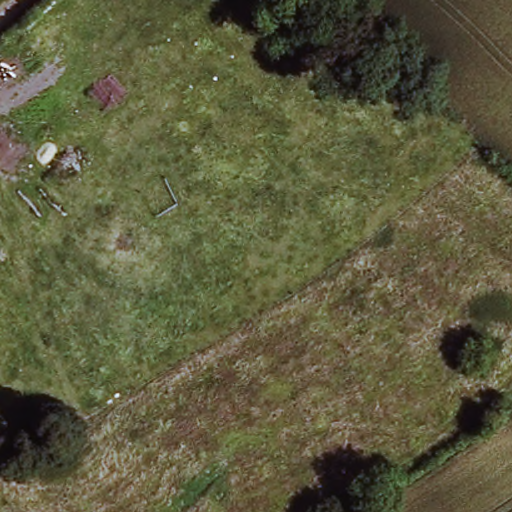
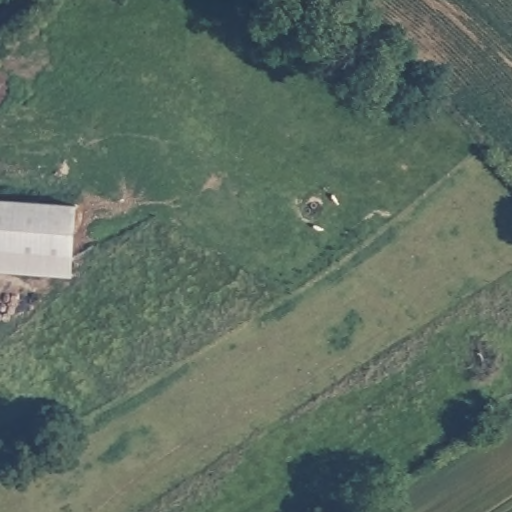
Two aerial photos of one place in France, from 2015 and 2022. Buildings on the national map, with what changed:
demolished [(1,83),(0,83),(0,59),(11,49),(24,63),(1,83)]
new [(80,205),(75,277),(0,272),(0,200),(80,205)]

